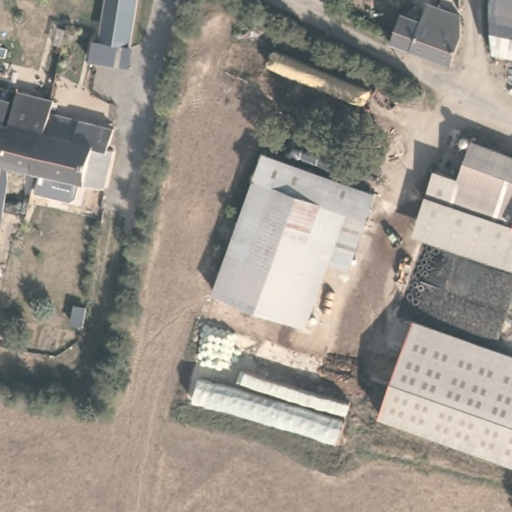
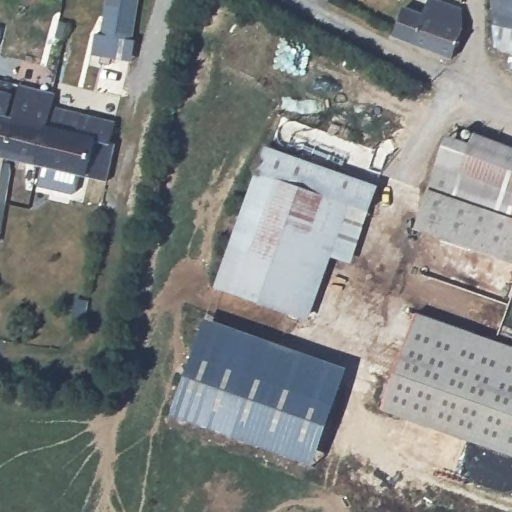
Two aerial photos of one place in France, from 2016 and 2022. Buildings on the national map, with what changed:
unchanged [(108,0),(139,0),(133,40),(103,34),(108,0)]
unchanged [(407,14),(422,20),(429,0),(441,0),(464,8),(465,35),(453,61),(398,38),(407,14)]
unchanged [(494,17),(492,0),(512,0),(512,53),(498,50),(494,17)]
unchanged [(45,123),(37,164),(4,156),(12,114),(18,82),(51,88),(48,103),(45,123)]
unchanged [(6,96),(3,112),(12,114),(4,156),(0,155),(0,94),(6,96)]
unchanged [(45,123),(48,103),(115,119),(111,139),(45,123)]
unchanged [(111,139),(104,180),(37,164),(45,123),(111,139)]
unchanged [(426,191),(434,163),(458,171),(468,144),(456,138),(460,128),(471,132),(512,148),(512,263),(413,229),(426,191)]
unchanged [(382,186),(373,212),(348,203),(263,174),(273,148),(382,186)]
unchanged [(309,319),(223,290),(263,174),(348,203),(309,319)]
unchanged [(336,253),(352,207),(374,215),(353,260),(336,253)]
unchanged [(512,449),(386,408),(394,384),(417,312),(512,343),(512,449)]
new [(313,466),(171,417),(204,321),(346,369),(313,466)]

